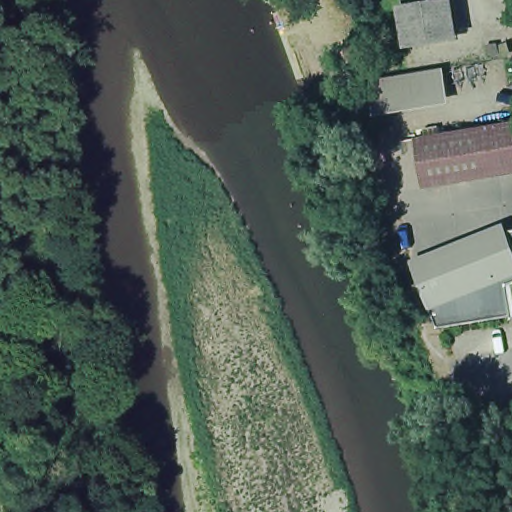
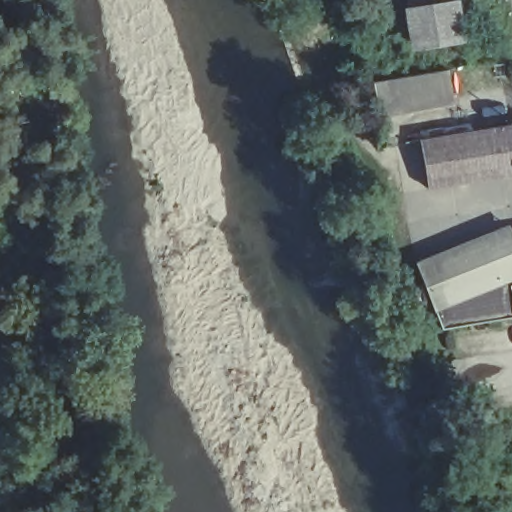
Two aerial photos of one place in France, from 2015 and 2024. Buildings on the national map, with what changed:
unchanged [(397,3),(406,3),(405,0),(453,0),(458,39),(405,46),(397,3)]
unchanged [(454,103),(379,116),(373,79),(446,68),(454,103)]
unchanged [(430,186),(420,136),(512,122),(512,174),(430,186)]
unchanged [(512,230),(512,313),(442,326),(414,261),(508,222),(512,230)]

